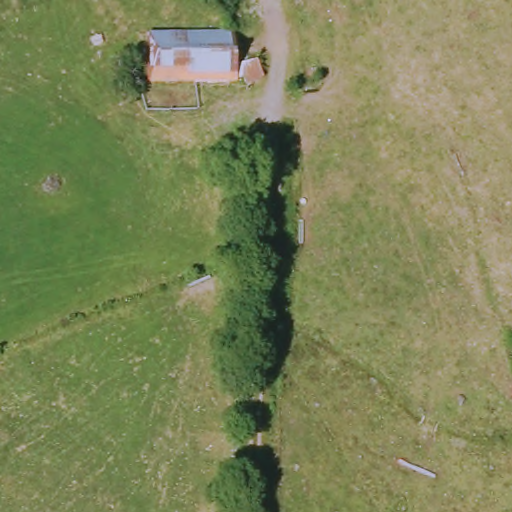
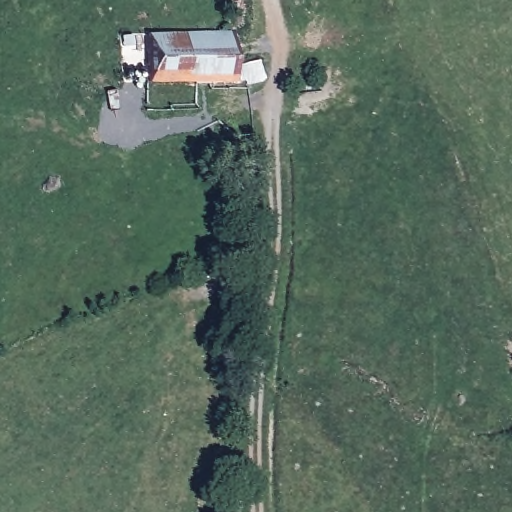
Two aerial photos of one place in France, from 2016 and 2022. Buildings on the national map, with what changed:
unchanged [(239,82),(231,82),(231,85),(143,85),(145,37),(229,37),(231,69),(253,64),(259,80),(255,84),(242,87),(239,82)]

